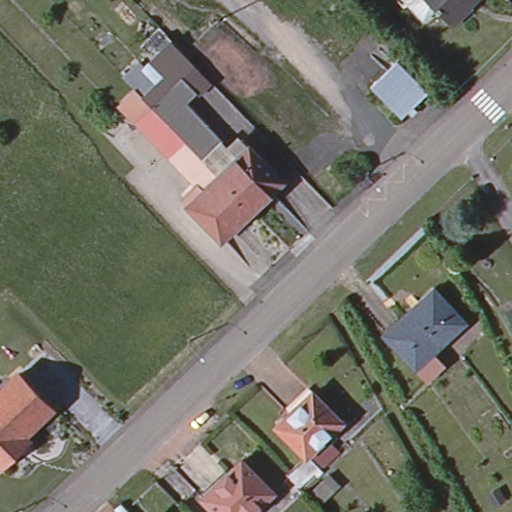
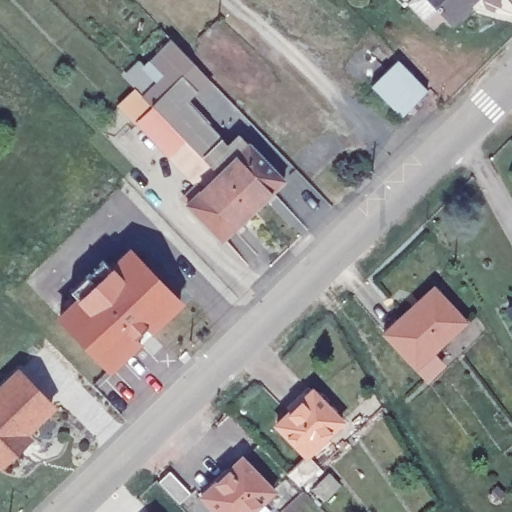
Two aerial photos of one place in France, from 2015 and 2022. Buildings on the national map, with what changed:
unchanged [(472,7),(457,21),(444,7),(442,9),(437,5),(440,2),(438,0),(474,0),(469,5),(472,7)]
unchanged [(399,57),(430,88),(404,114),(373,82),(399,57)]
unchanged [(157,148),(137,127),(121,110),(139,94),(152,108),(172,90),(193,70),(208,86),(187,106),(224,142),(232,151),(243,140),(250,147),(285,182),(254,214),(222,244),(187,208),(189,206),(184,201),(200,185),(187,170),(162,143),(157,148)]
new [(185,303),(110,373),(57,316),(78,297),(72,291),(102,261),(109,267),(130,247),(185,303)]
unchanged [(467,320),(433,353),(442,363),(429,377),(419,366),(415,368),(385,332),(434,287),(467,320)]
unchanged [(506,307),(512,304),(512,319),(506,307)]
unchanged [(29,432),(35,439),(3,469),(0,466),(0,381),(16,366),(57,407),(29,432)]
unchanged [(344,416),(308,449),(278,418),(313,385),(344,416)]
unchanged [(320,471),(317,467),(302,482),(289,467),(308,449),(320,462),(325,467),(320,471)]
unchanged [(275,491),(252,512),(218,512),(202,495),(244,457),(275,491)]

